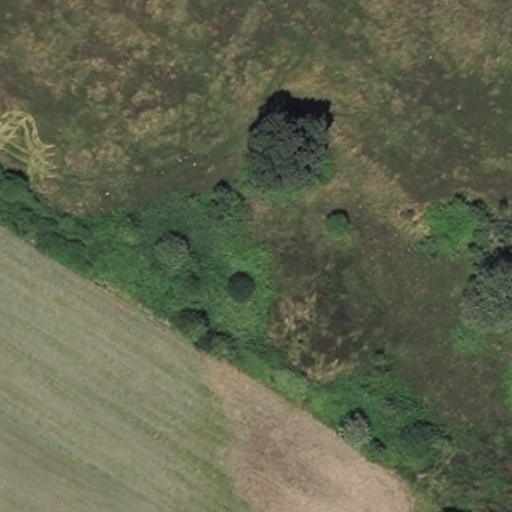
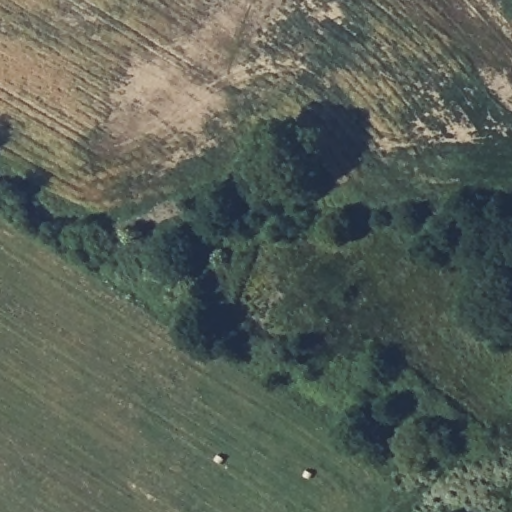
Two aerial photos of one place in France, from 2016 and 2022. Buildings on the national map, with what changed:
[]

